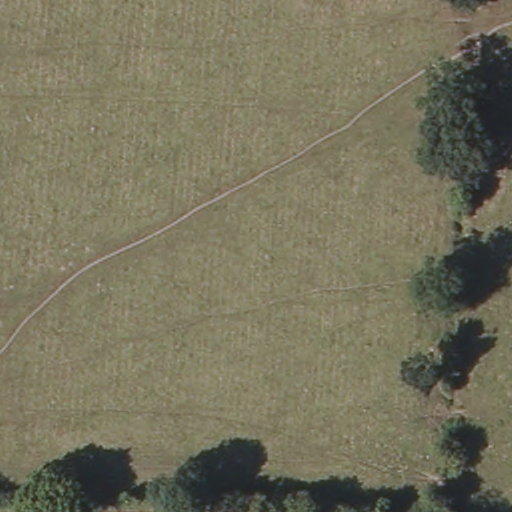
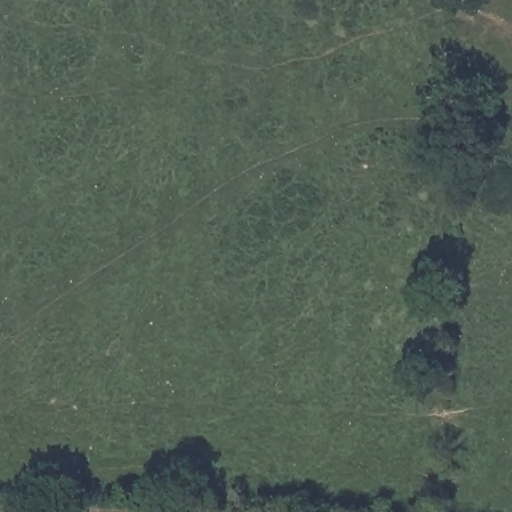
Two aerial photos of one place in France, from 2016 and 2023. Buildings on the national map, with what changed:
[]

